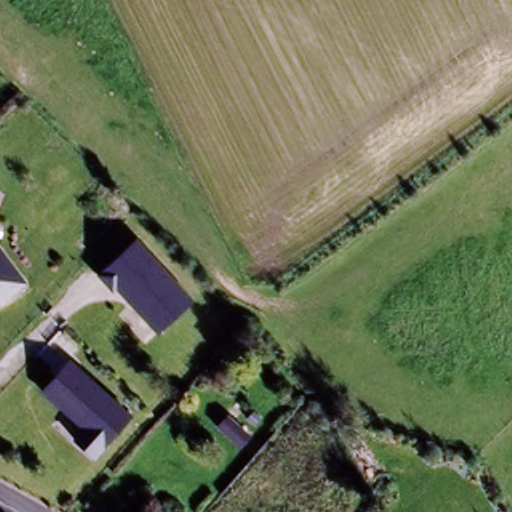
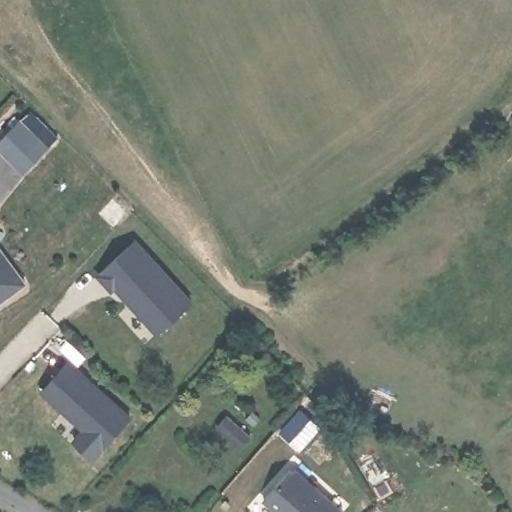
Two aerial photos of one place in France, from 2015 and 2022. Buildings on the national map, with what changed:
new [(0,139),(20,119),(49,149),(25,175),(0,150),(0,139)]
unchanged [(116,290),(111,294),(96,277),(100,273),(136,240),(194,302),(157,336),(116,290)]
unchanged [(31,286),(0,308),(0,243),(3,244),(31,286)]
unchanged [(81,431),(40,393),(69,359),(133,415),(94,461),(71,442),(81,431)]
unchanged [(215,432),(226,421),(248,442),(237,452),(215,432)]
new [(293,470),(339,512),(275,512),(265,502),(293,470)]

